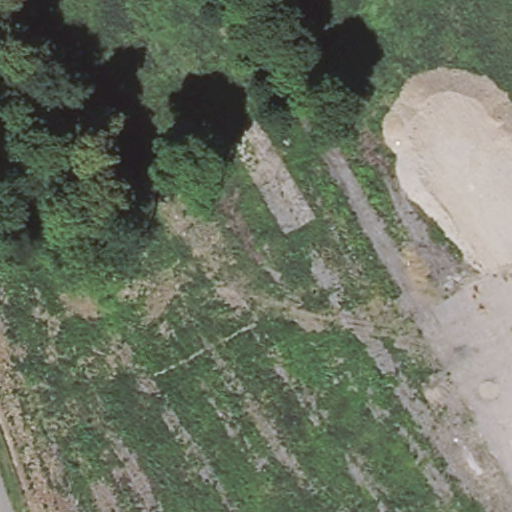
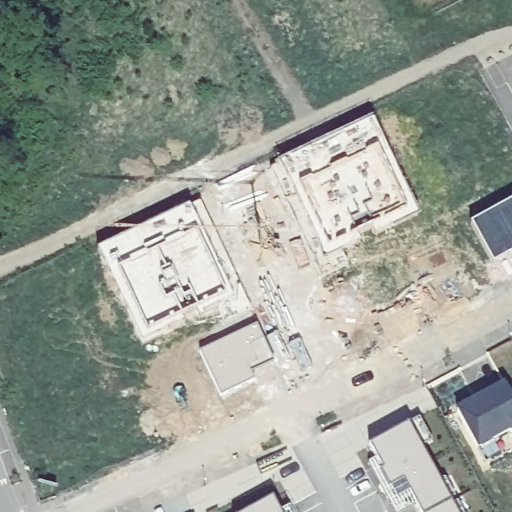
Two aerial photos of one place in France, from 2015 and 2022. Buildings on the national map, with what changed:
new [(374,114),(419,209),(325,256),(279,156),(374,114)]
new [(512,249),(494,258),(472,220),(512,197),(512,249)]
new [(190,201),(234,294),(143,336),(100,244),(190,201)]
demolished [(99,309),(113,333),(84,348),(70,314),(99,309)]
new [(257,322),(276,357),(251,368),(254,376),(221,392),(201,349),(257,322)]
new [(478,450),(458,412),(506,386),(512,398),(512,436),(510,432),(478,450)]
new [(422,450),(409,426),(420,420),(433,444),(422,450)]
new [(369,448),(409,426),(452,505),(438,512),(419,512),(404,484),(389,491),(386,484),(380,474),(383,472),(369,448)]
new [(394,512),(388,500),(380,487),(369,466),(378,462),(383,472),(380,474),(386,484),(394,497),(397,502),(409,495),(417,509),(412,512),(394,512)]
new [(279,512),(252,512),(273,500),(279,512)]
new [(438,512),(452,505),(456,512),(438,512)]
new [(291,512),(286,512),(289,510),(291,512)]

